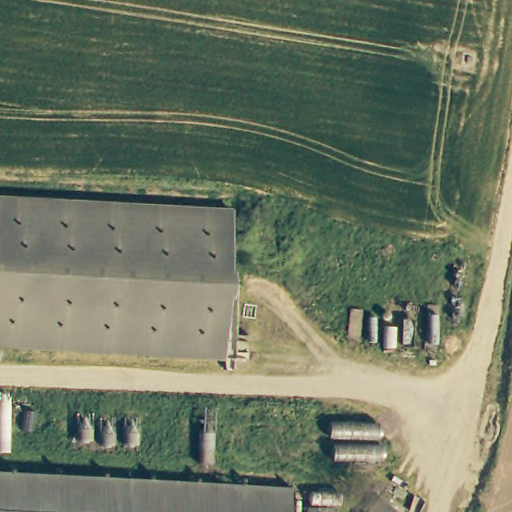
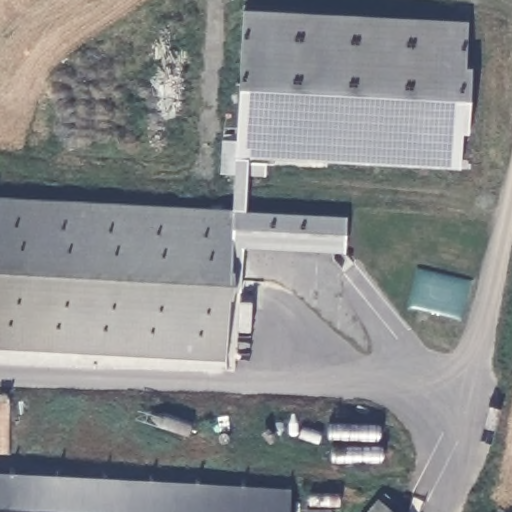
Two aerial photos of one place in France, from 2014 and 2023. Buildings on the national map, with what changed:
new [(466,67),(473,68),(470,135),(463,135),(461,169),(248,157),(246,211),(347,217),(344,253),(243,247),(242,292),(234,293),(226,359),(222,360),(228,214),(233,215),(244,10),(469,22),(466,67)]
unchanged [(228,214),(222,360),(0,348),(0,203),(228,214)]
unchanged [(288,512),(0,512),(0,482),(289,492),(288,512)]
unchanged [(381,501),(393,512),(372,512),(381,501)]

